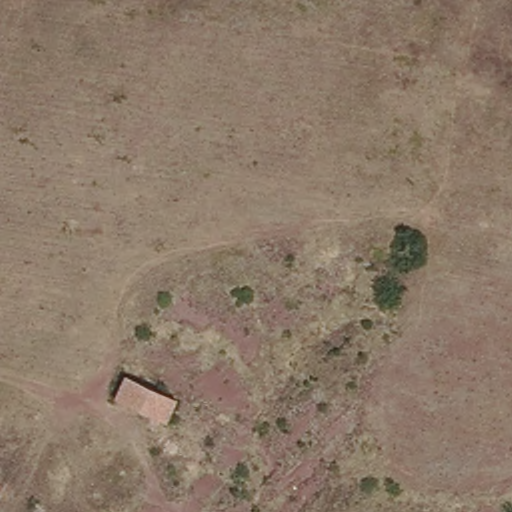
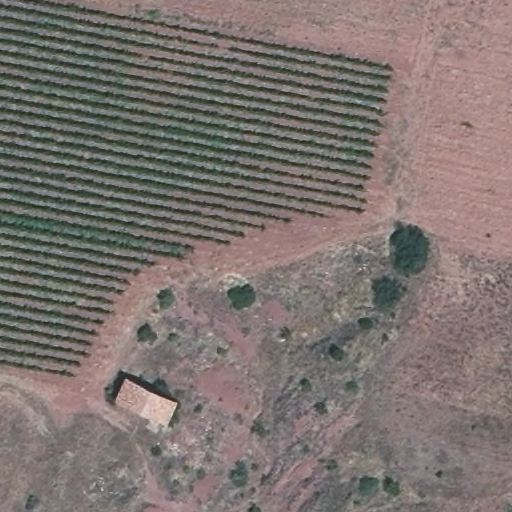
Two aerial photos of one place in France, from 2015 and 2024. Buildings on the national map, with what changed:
unchanged [(123,434),(137,407),(110,394),(119,375),(167,399),(158,417),(145,445),(131,439),(123,434)]

